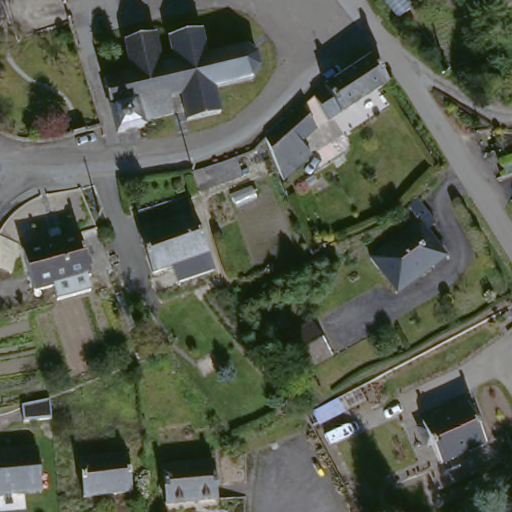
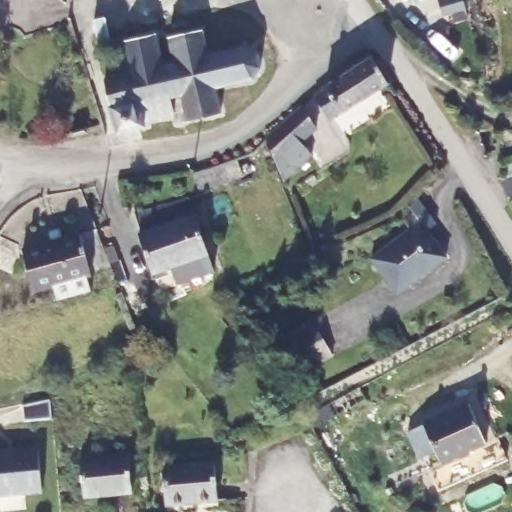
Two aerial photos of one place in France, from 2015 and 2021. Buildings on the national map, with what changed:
unchanged [(390,0),(400,0),(408,10),(411,14),(399,24),(392,15),(384,5),(390,0)]
unchanged [(405,0),(409,0),(406,2),(405,0)]
unchanged [(494,0),(512,0),(512,8),(501,16),(494,0)]
unchanged [(183,125),(178,99),(166,102),(169,118),(139,125),(141,131),(113,137),(100,84),(127,77),(119,45),(150,38),(158,70),(169,67),(164,42),(198,33),(203,59),(241,50),(253,56),(256,69),(248,82),(212,91),(218,117),(183,125)]
unchanged [(337,121),(333,116),(323,124),(308,104),(318,95),(364,66),(381,92),(337,121)]
unchanged [(281,187),(265,144),(273,137),(303,112),(313,134),(299,146),(304,154),(309,162),(281,187)]
unchanged [(196,167),(203,165),(238,152),(246,173),(210,187),(204,189),(196,167)]
unchanged [(136,244),(128,225),(179,204),(188,222),(136,244)]
unchanged [(403,214),(411,204),(429,231),(419,237),(438,264),(389,300),(366,266),(415,231),(403,214)]
unchanged [(169,276),(151,283),(134,245),(136,244),(188,222),(211,277),(176,292),(169,276)]
unchanged [(54,306),(51,290),(31,295),(19,252),(46,243),(44,238),(43,235),(55,232),(56,234),(58,240),(75,235),(88,280),(83,281),(88,296),(54,306)]
unchanged [(15,261),(8,275),(0,271),(0,241),(16,247),(13,252),(15,261)]
unchanged [(281,343),(308,327),(329,364),(303,378),(281,343)]
unchanged [(424,468),(416,472),(411,464),(420,459),(401,424),(467,391),(489,430),(498,425),(511,449),(435,488),(424,468)]
unchanged [(53,417),(24,418),(23,408),(52,402),(53,417)]
unchanged [(34,491),(0,494),(0,454),(30,451),(34,491)]
unchanged [(74,466),(118,461),(122,497),(80,501),(74,466)]
unchanged [(153,472),(201,467),(206,506),(156,510),(153,472)]

